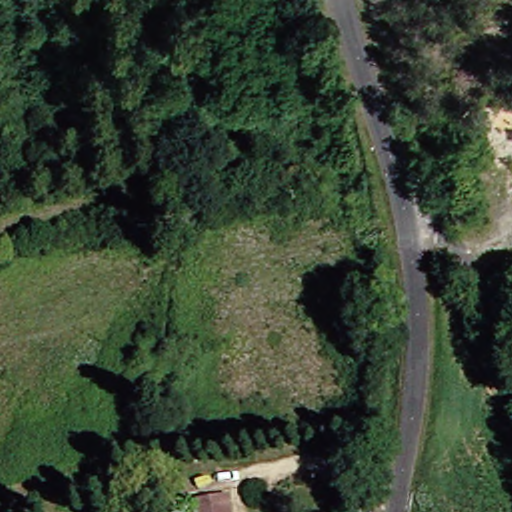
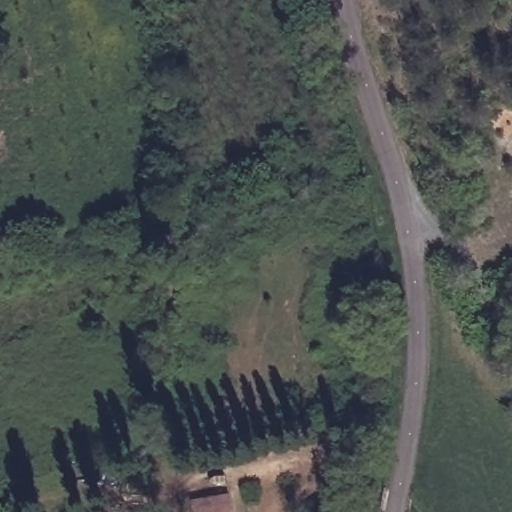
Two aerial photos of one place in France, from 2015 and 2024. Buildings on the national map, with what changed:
unchanged [(201,512),(200,509),(229,504),(230,512),(201,512)]

